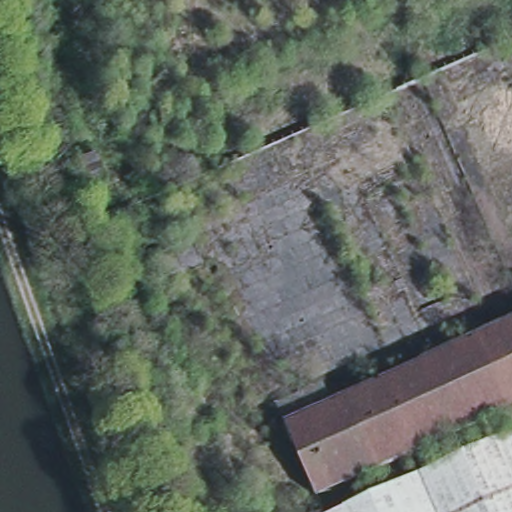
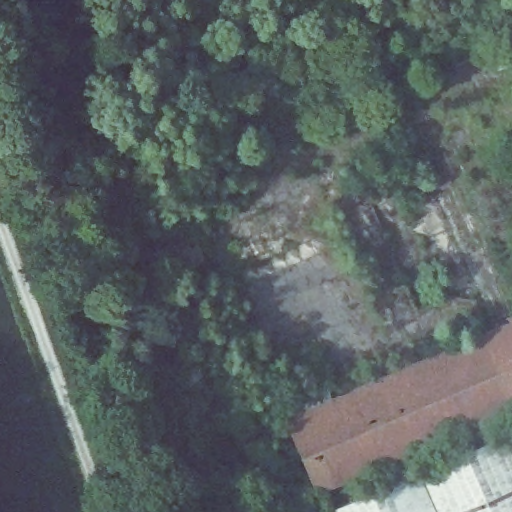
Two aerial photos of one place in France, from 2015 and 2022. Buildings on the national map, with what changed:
unchanged [(92,154),(102,182),(83,189),(74,161),(92,154)]
unchanged [(180,241),(197,234),(207,260),(167,277),(157,251),(180,241)]
unchanged [(284,416),(512,317),(512,407),(317,492),(284,416)]
unchanged [(512,431),(512,512),(325,512),(512,431)]

